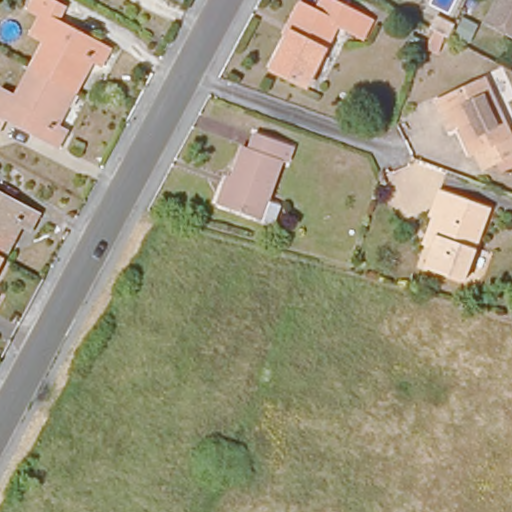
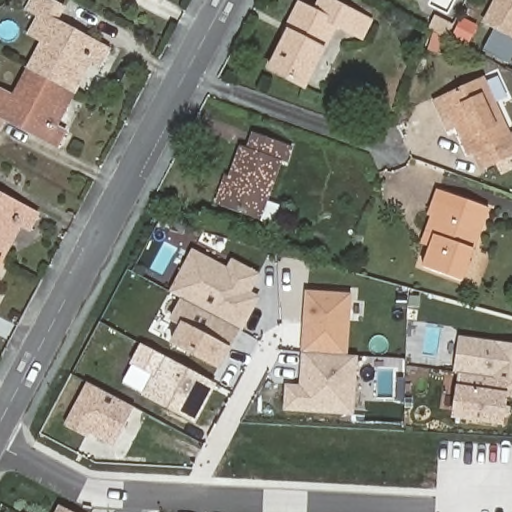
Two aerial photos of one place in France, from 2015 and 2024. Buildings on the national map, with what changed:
unchanged [(100,64),(89,59),(77,82),(71,79),(66,89),(30,70),(44,41),(31,34),(40,16),(27,8),(32,0),(50,0),(63,6),(55,21),(107,49),(100,64)]
unchanged [(156,2),(151,0),(157,0),(156,2)]
unchanged [(349,32),(336,26),(305,87),(270,69),(292,28),(288,26),(299,4),(314,12),(321,0),(329,0),(358,15),(349,32)]
unchanged [(512,39),(486,26),(499,0),(512,0),(512,39)]
unchanged [(433,17),(452,26),(446,38),(430,30),(427,29),(433,17)]
unchanged [(461,19),(475,26),(466,42),(453,35),(461,19)]
unchanged [(410,37),(421,42),(418,49),(407,45),(410,37)]
unchanged [(60,99),(66,102),(53,126),(64,131),(56,145),(6,118),(0,130),(0,92),(1,90),(15,98),(30,70),(66,89),(60,99)]
unchanged [(512,155),(482,168),(473,149),(469,151),(457,125),(449,129),(436,102),(484,79),(511,137),(512,137),(512,155)]
unchanged [(286,161),(281,160),(266,202),(277,207),(271,224),(217,205),(226,178),(230,180),(242,146),(249,148),(254,133),(291,147),(286,161)]
unchanged [(461,280),(422,266),(439,219),(430,216),(439,189),(487,207),(461,280)]
unchanged [(41,219),(34,234),(23,228),(11,251),(5,248),(0,258),(0,195),(41,219)]
new [(183,299),(171,293),(193,251),(228,270),(232,261),(259,275),(249,293),(258,298),(241,330),(239,329),(219,368),(172,343),(182,325),(171,319),(183,299)]
new [(307,293),(350,295),(346,355),(356,356),(352,413),(285,409),(287,386),(301,387),(302,369),(307,293)]
new [(456,372),(460,338),(512,346),(512,404),(505,403),(502,423),(453,416),(460,372),(456,372)]
new [(143,345),(215,383),(194,422),(144,395),(155,375),(133,364),(143,345)]
new [(89,383),(135,407),(115,445),(89,431),(85,436),(66,426),(89,383)]
new [(73,512),(55,512),(59,504),(73,512)]

